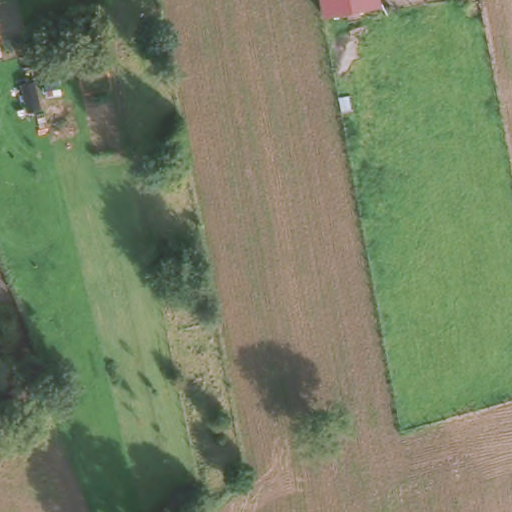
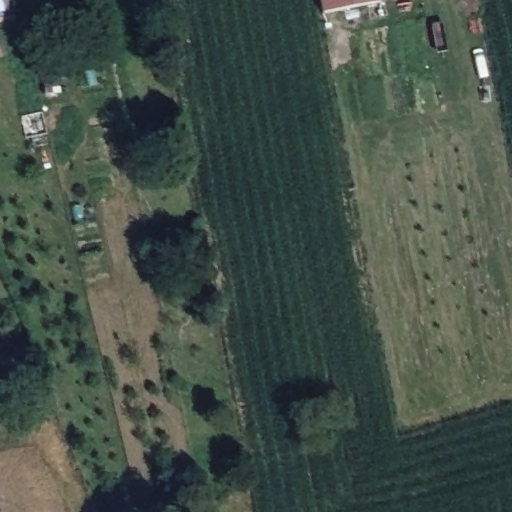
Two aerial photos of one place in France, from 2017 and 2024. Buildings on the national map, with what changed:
unchanged [(378,2),(322,12),(320,0),(378,0),(378,2)]

